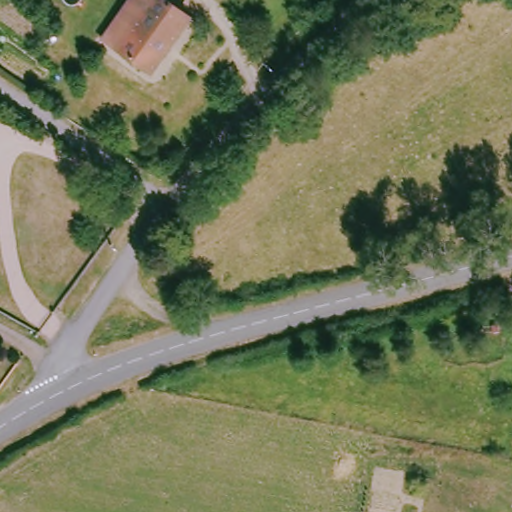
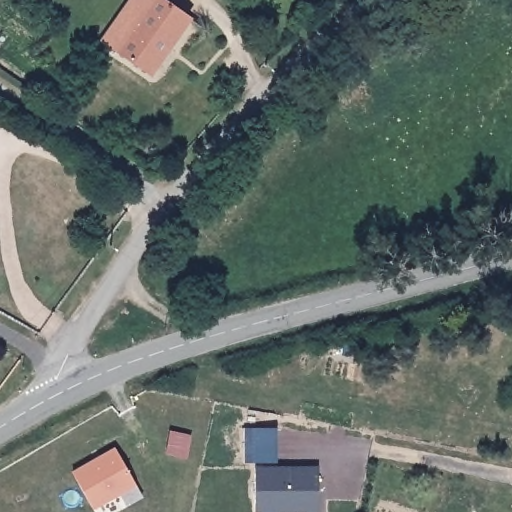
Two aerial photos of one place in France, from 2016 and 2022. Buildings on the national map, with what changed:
unchanged [(154,79),(117,52),(103,44),(133,0),(162,0),(193,22),(154,79)]
new [(171,432),(191,436),(186,458),(166,454),(171,432)]
new [(95,510),(72,471),(115,447),(136,486),(95,510)]
new [(318,512),(256,512),(256,467),(316,467),(318,512)]

